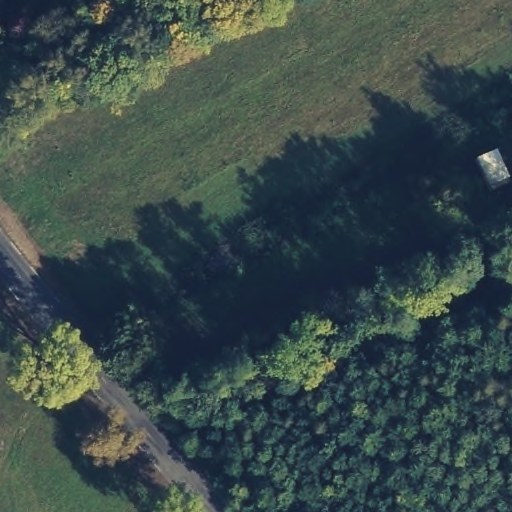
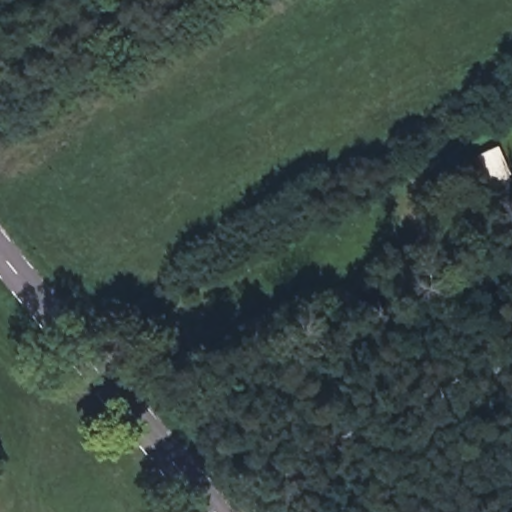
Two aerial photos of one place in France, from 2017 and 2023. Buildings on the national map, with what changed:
unchanged [(499,142),(512,171),(512,174),(494,184),(477,152),(499,142)]

